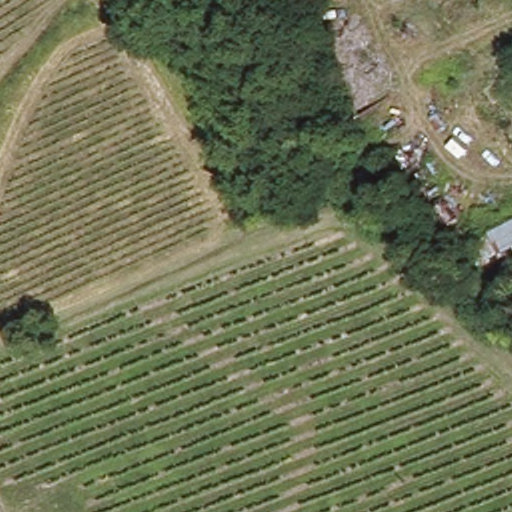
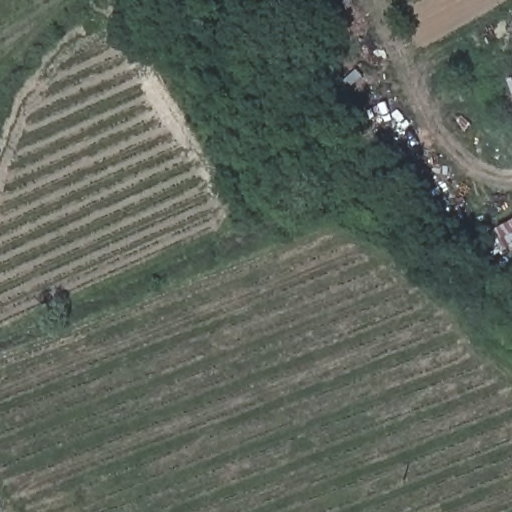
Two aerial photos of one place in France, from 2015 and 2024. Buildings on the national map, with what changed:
unchanged [(493,257),(482,236),(512,219),(512,248),(493,257)]

